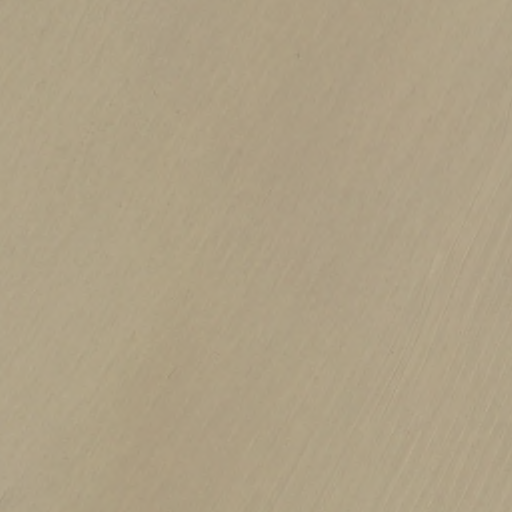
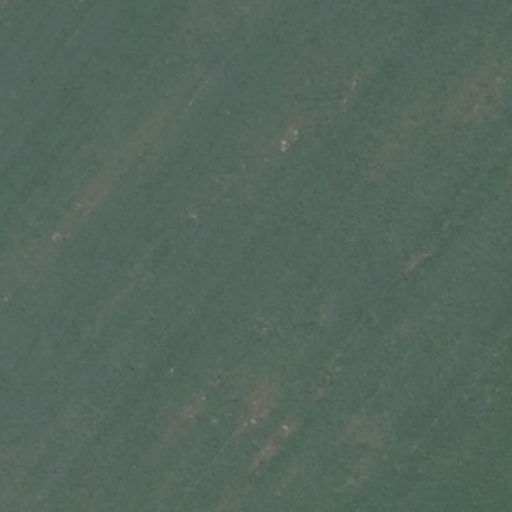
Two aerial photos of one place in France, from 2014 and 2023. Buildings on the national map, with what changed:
[]

